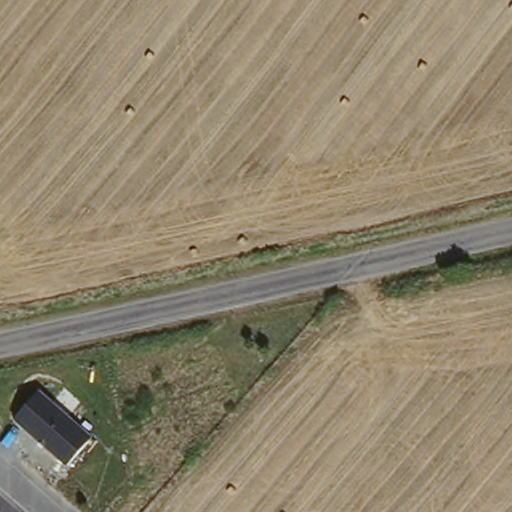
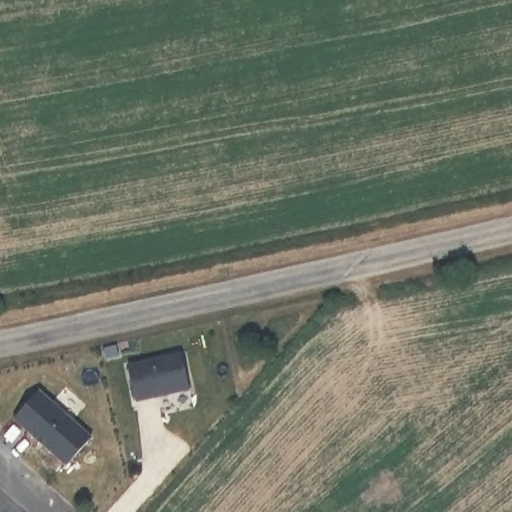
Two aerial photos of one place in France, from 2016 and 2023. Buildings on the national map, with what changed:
new [(182,356),(189,387),(136,396),(131,368),(182,356)]
unchanged [(14,419),(40,391),(93,439),(66,467),(14,419)]

